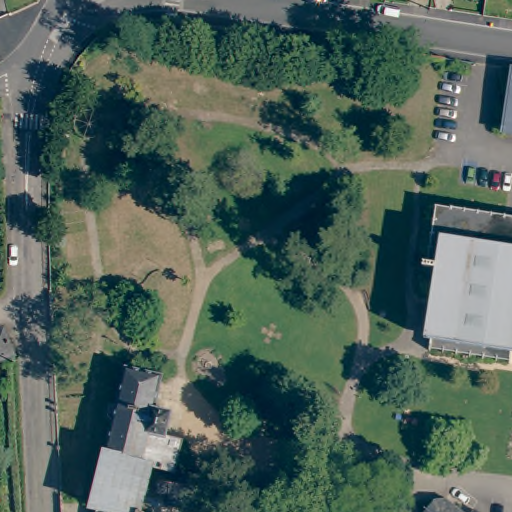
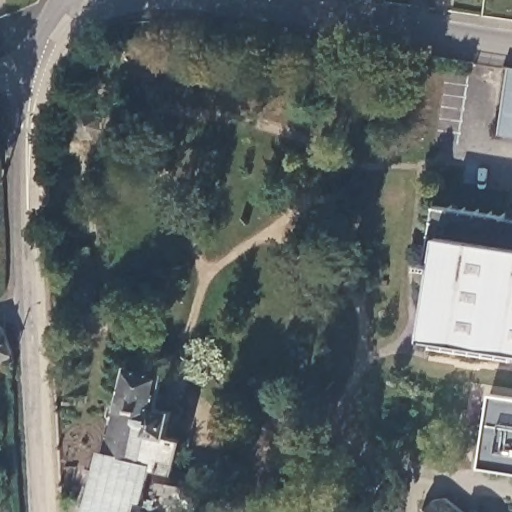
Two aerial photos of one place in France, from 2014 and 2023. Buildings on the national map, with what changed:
unchanged [(503,65),(512,66),(512,132),(495,129),(503,65)]
unchanged [(430,350),(441,271),(428,269),(437,208),(506,218),(506,220),(512,221),(512,357),(511,362),(430,350)]
unchanged [(0,361),(0,330),(2,329),(10,345),(14,356),(9,358),(0,361)]
unchanged [(143,512),(97,512),(97,510),(92,509),(115,421),(109,416),(111,408),(118,406),(127,369),(162,377),(155,409),(172,413),(166,436),(182,440),(175,473),(214,479),(208,510),(167,504),(169,496),(155,494),(147,492),(143,512)]
new [(490,395),(512,399),(512,473),(480,467),(490,395)]
unchanged [(446,500),(461,512),(426,512),(435,501),(446,500)]
unchanged [(476,512),(475,512),(475,511),(476,512)]

